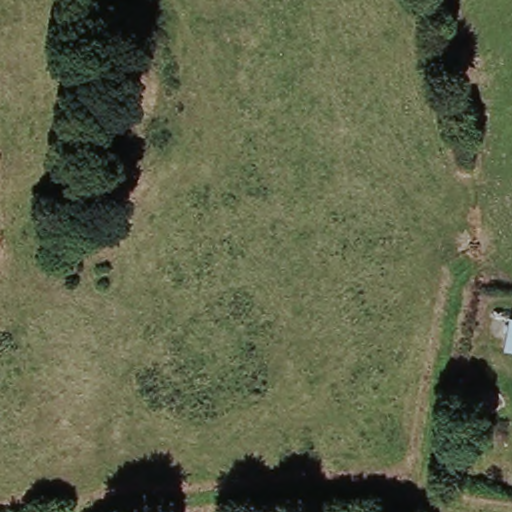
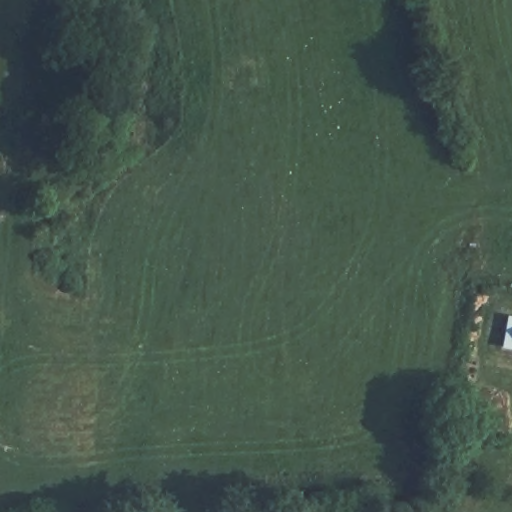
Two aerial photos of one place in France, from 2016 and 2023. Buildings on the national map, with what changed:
unchanged [(512,317),(512,348),(490,344),(496,314),(512,317)]

